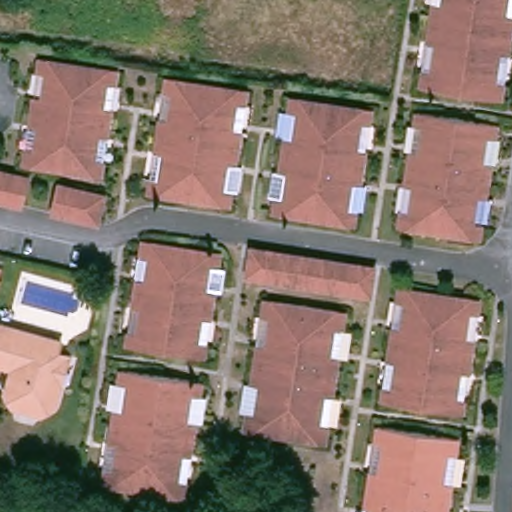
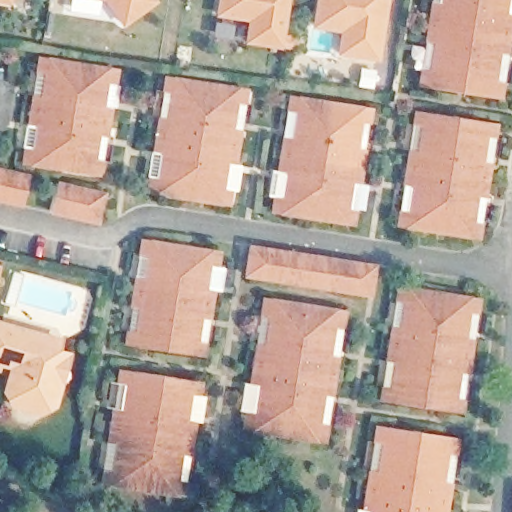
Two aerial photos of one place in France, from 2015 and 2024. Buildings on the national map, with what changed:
new [(2,0),(9,0),(9,1),(2,0)]
new [(125,23),(108,0),(154,0),(155,1),(125,23)]
new [(291,0),(284,46),(249,41),(253,19),(220,14),(222,0),(291,0)]
new [(337,53),(343,18),(314,13),(316,0),(384,0),(375,59),(337,53)]
unchanged [(422,81),(430,30),(435,0),(512,0),(512,33),(503,94),(422,81)]
unchanged [(114,70),(104,136),(97,177),(19,165),(26,120),(37,58),(114,70)]
unchanged [(246,90),(234,164),(227,208),(147,196),(155,146),(166,78),(246,90)]
unchanged [(333,105),(369,110),(365,135),(351,228),(270,216),(277,174),(289,98),(333,105)]
unchanged [(492,140),(499,141),(495,166),(488,166),(475,245),(395,232),(414,114),(494,126),(492,140)]
unchanged [(0,171),(29,177),(20,211),(0,205),(0,171)]
unchanged [(48,216),(56,185),(106,195),(98,225),(48,216)]
unchanged [(218,255),(208,318),(201,361),(123,349),(130,310),(141,243),(218,255)]
unchanged [(241,281),(248,246),(375,267),(369,303),(241,281)]
unchanged [(476,303),(471,334),(459,409),(381,397),(393,327),(399,291),(476,303)]
unchanged [(278,308),(304,312),(339,318),(342,318),(326,426),(324,437),(323,444),(242,432),(243,426),(262,307),(262,306),(278,308)]
unchanged [(51,404),(38,412),(4,402),(6,393),(1,392),(10,366),(0,362),(0,326),(56,341),(53,352),(65,356),(57,384),(51,404)]
unchanged [(197,391),(190,434),(180,497),(102,485),(112,423),(120,379),(197,391)]
unchanged [(455,446),(450,483),(445,512),(362,512),(369,471),(375,434),(455,446)]

